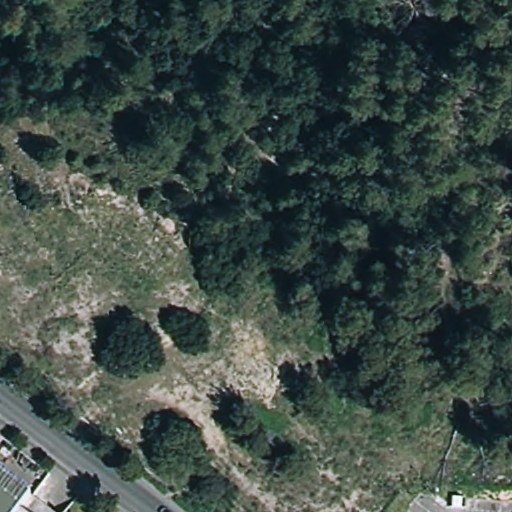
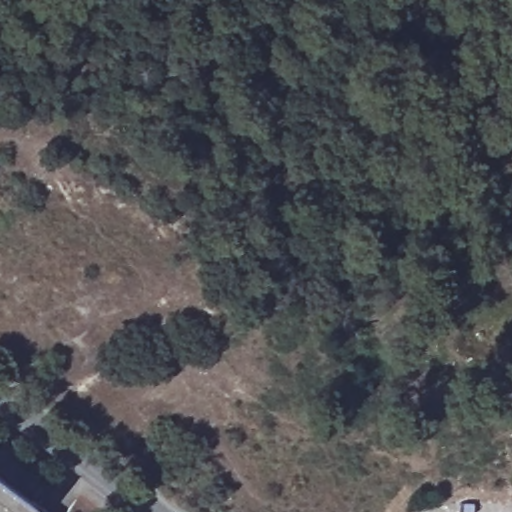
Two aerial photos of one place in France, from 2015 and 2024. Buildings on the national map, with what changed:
unchanged [(51,512),(0,512),(0,473),(51,512)]

